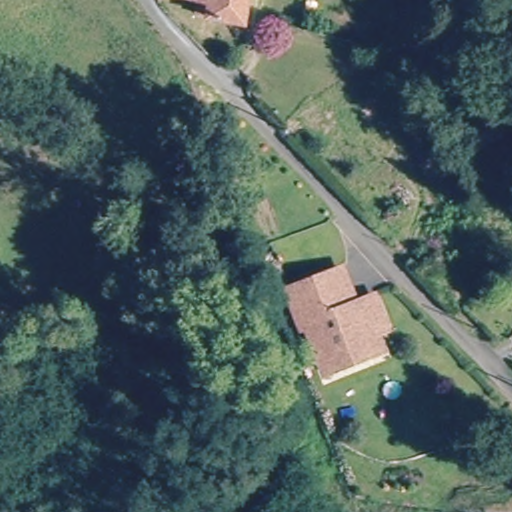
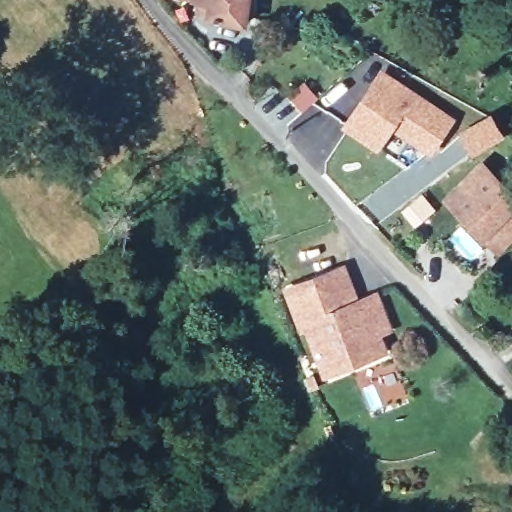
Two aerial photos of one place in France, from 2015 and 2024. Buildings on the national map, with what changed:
unchanged [(192,7),(193,0),(245,0),(244,16),(192,7)]
new [(457,119),(432,157),(395,130),(379,153),(342,128),(382,68),(457,119)]
new [(506,135),(474,154),(461,131),(492,113),(506,135)]
demolished [(461,138),(483,118),(497,133),(473,153),(461,138)]
new [(512,189),(512,240),(497,255),(482,239),(442,197),(482,159),(512,189)]
unchanged [(320,362),(305,323),(298,325),(285,290),(322,274),(341,266),(356,304),(372,297),(383,327),(374,330),(381,346),(343,362),(323,371),(320,362)]

